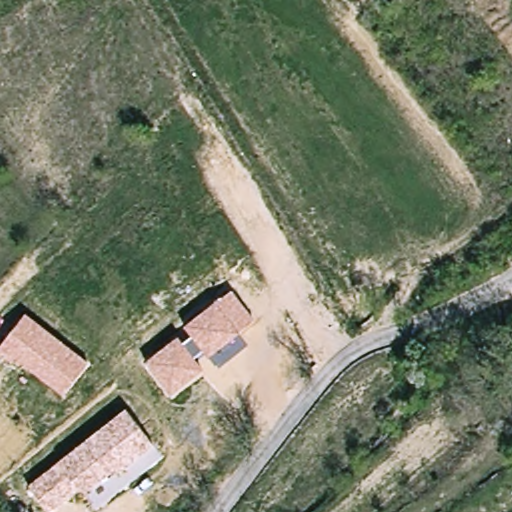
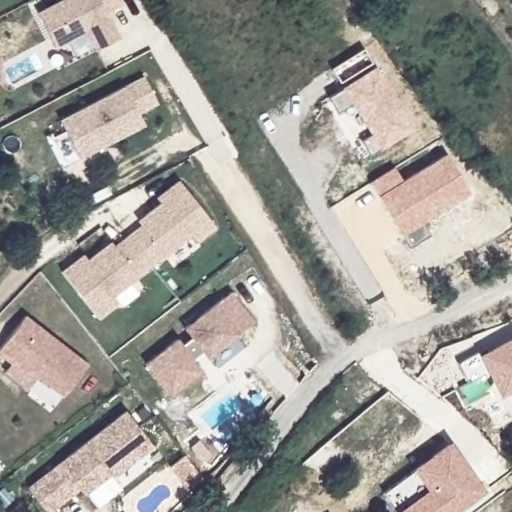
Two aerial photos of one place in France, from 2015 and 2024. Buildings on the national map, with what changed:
new [(64,0),(116,0),(118,5),(103,13),(118,40),(95,53),(85,34),(53,51),(35,16),(64,0)]
new [(380,149),(371,154),(363,140),(371,135),(352,103),(338,112),(329,97),(343,89),(342,87),(376,67),(415,129),(381,150),(380,149)]
new [(140,78),(155,105),(136,115),(141,126),(78,161),(57,123),(140,78)]
new [(447,154),(471,195),(424,224),(431,235),(410,247),(404,237),(379,197),(370,183),(395,168),(402,181),(447,154)]
new [(89,263),(103,251),(111,245),(115,250),(143,228),(139,223),(147,217),(161,205),(158,200),(179,183),(216,229),(198,244),(192,237),(112,300),(118,307),(100,321),(63,275),(85,258),(89,263)]
unchanged [(145,364),(177,339),(183,346),(193,338),(191,323),(216,303),(231,292),(253,322),(238,333),(207,358),(203,353),(193,360),(202,371),(168,395),(145,364)]
unchanged [(65,396),(15,357),(10,362),(0,355),(0,347),(25,316),(87,363),(65,396)]
new [(487,351),(512,338),(512,392),(501,398),(499,396),(495,398),(483,375),(467,384),(455,363),(485,346),(487,351)]
new [(14,363),(36,381),(26,394),(4,376),(10,368),(14,363)]
unchanged [(153,445),(85,493),(82,490),(51,512),(49,512),(28,487),(125,410),(153,445)]
new [(461,512),(395,512),(384,493),(413,471),(412,470),(450,441),(488,493),(461,512)]

